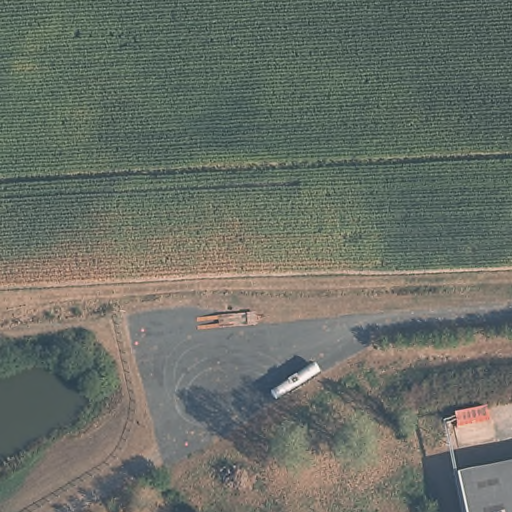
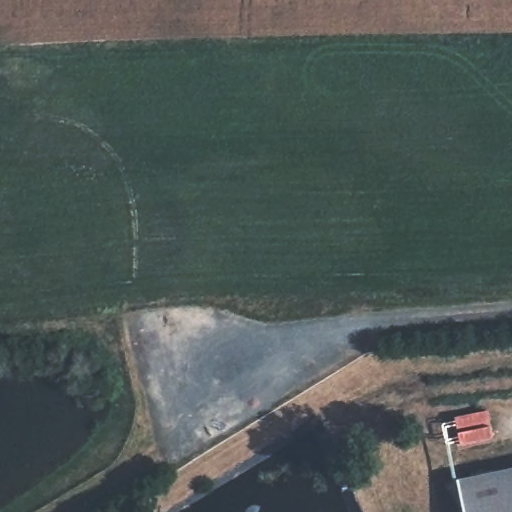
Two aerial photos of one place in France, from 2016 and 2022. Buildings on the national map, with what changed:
unchanged [(512,470),(512,512),(467,512),(461,479),(512,470)]

